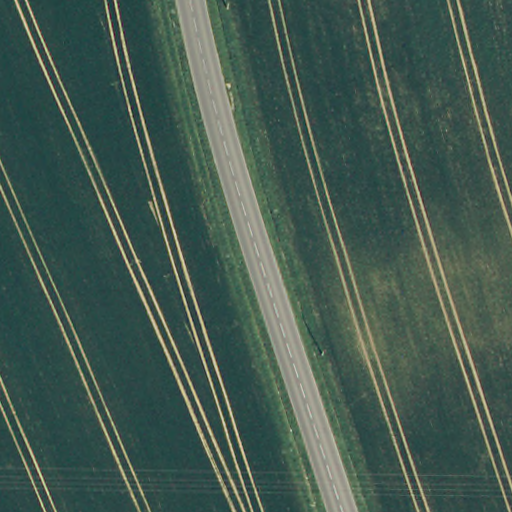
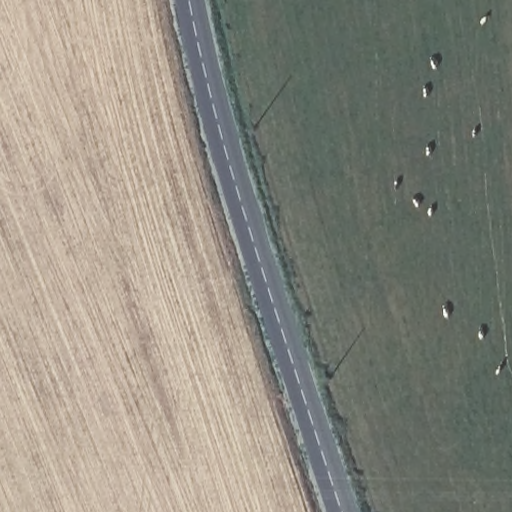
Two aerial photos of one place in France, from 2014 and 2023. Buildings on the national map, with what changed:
[]

